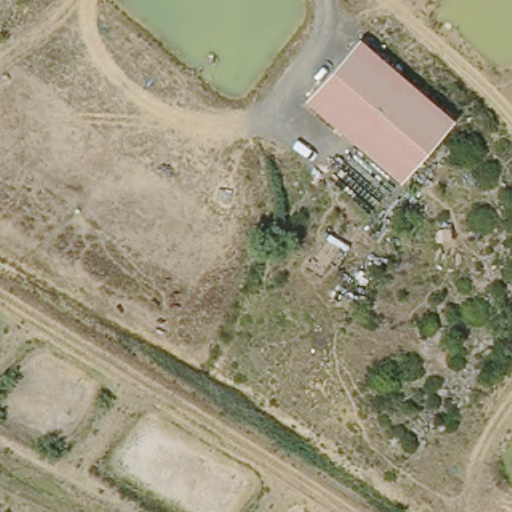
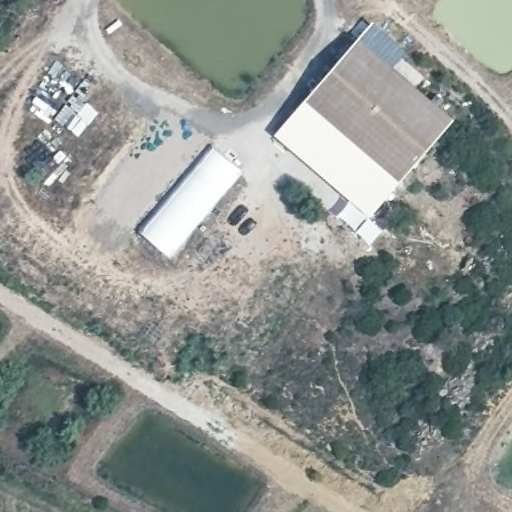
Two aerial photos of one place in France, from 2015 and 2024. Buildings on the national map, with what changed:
unchanged [(359,31),(454,114),(402,174),(307,92),(359,31)]
new [(310,95),(402,174),(370,217),(275,135),(310,95)]
new [(242,171),(171,257),(141,234),(213,147),(242,171)]

